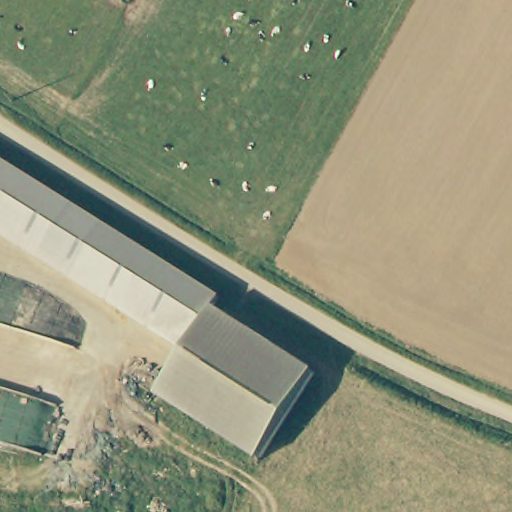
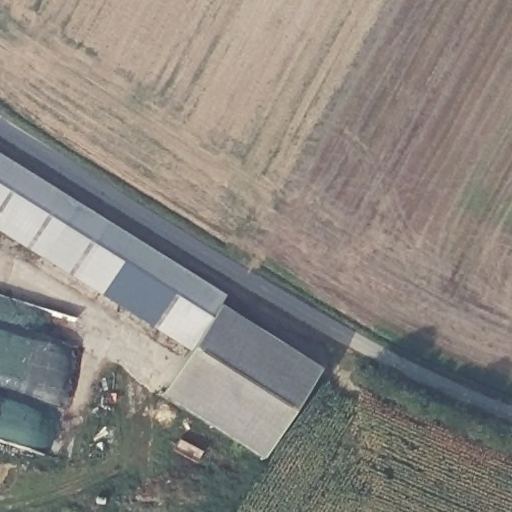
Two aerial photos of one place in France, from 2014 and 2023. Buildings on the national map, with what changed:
unchanged [(209,317),(188,352),(20,250),(0,237),(0,165),(29,182),(221,293),(209,317)]
unchanged [(310,378),(265,457),(164,399),(188,352),(209,317),(310,378)]

